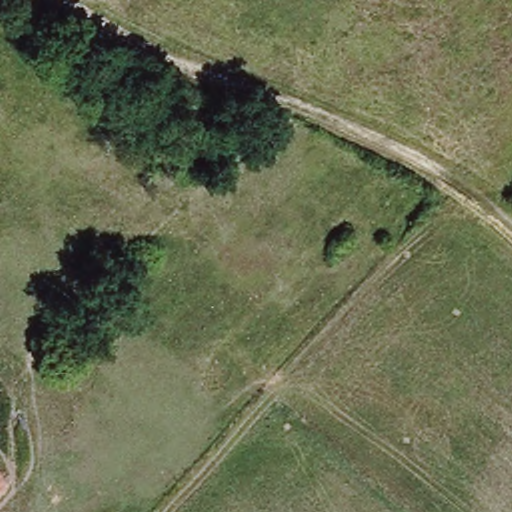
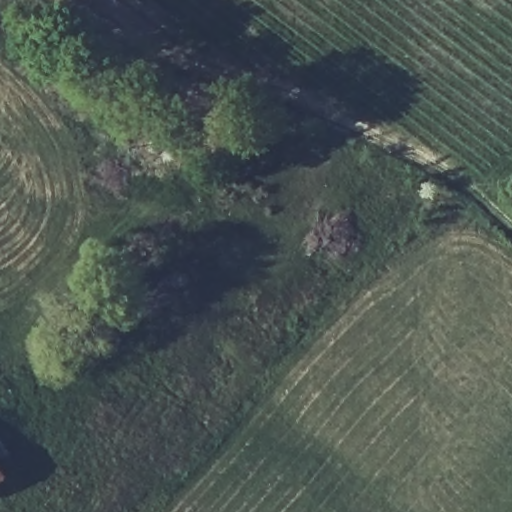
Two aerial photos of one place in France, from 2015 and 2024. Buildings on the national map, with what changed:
unchanged [(0,476),(0,468),(4,473),(0,476)]

